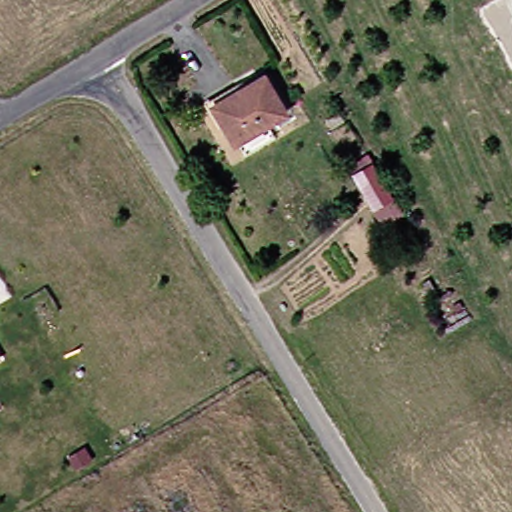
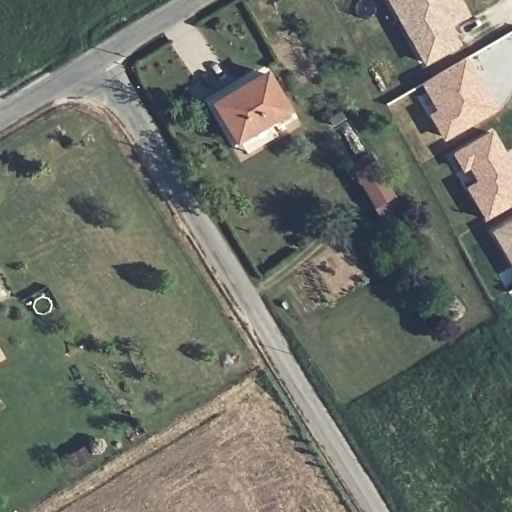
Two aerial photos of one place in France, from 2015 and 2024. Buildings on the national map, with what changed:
new [(391,0),(460,0),(468,15),(450,26),(460,44),(427,63),(417,44),(395,7),(391,0)]
new [(466,62),(495,112),(446,140),(433,119),(442,115),(425,86),(466,62)]
unchanged [(222,107),(271,77),(293,113),(242,143),(222,107)]
new [(493,132),(512,166),(512,185),(512,205),(488,219),(470,187),(481,182),(472,165),(465,168),(457,154),(493,132)]
unchanged [(377,163),(410,217),(391,229),(358,175),(377,163)]
new [(512,224),(512,260),(496,233),(512,224)]

